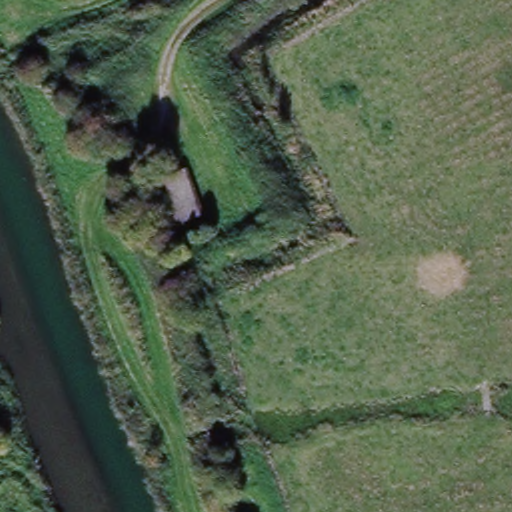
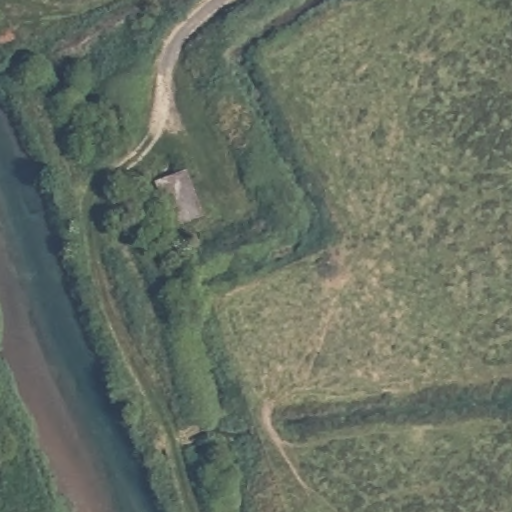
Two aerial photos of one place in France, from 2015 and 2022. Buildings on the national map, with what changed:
unchanged [(203,220),(172,229),(157,180),(188,169),(203,220)]

